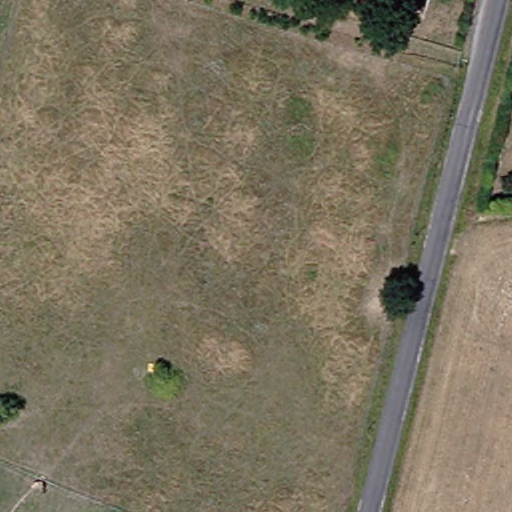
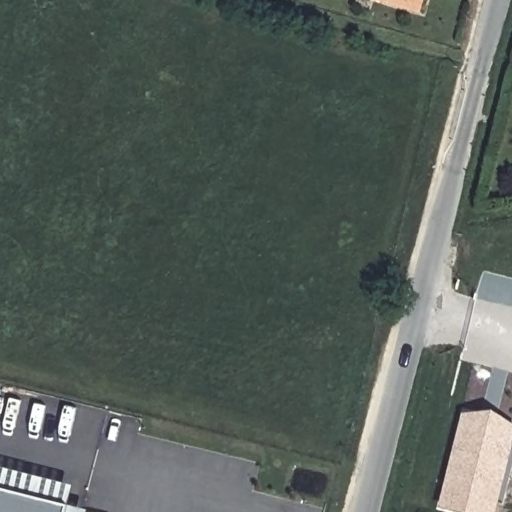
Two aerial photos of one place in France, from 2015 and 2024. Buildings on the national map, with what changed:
unchanged [(366,0),(414,0),(410,12),(366,0)]
new [(493,410),(512,423),(512,448),(496,512),(460,512),(439,507),(462,412),(493,410)]
new [(65,512),(0,512),(0,484),(68,502),(65,512)]

